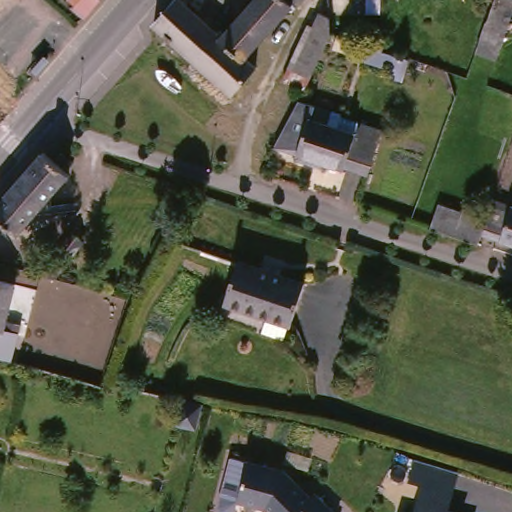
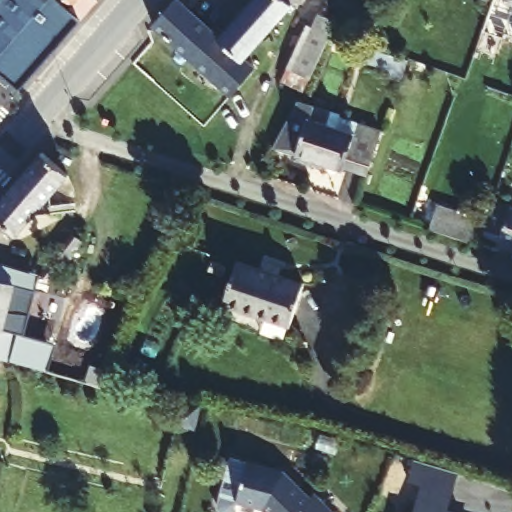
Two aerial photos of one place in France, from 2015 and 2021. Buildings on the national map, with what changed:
new [(79,17),(19,89),(0,72),(0,0),(59,0),(79,17)]
unchanged [(69,0),(94,0),(80,16),(67,5),(71,2),(69,0)]
unchanged [(285,4),(270,21),(237,59),(247,70),(225,95),(200,72),(150,26),(172,0),(215,39),(250,0),(280,0),(285,4)]
unchanged [(289,8),(285,4),(280,0),(296,0),(289,8)]
unchanged [(494,61),(471,59),(492,0),(512,0),(512,13),(494,61)]
unchanged [(278,81),(285,67),(306,25),(312,29),(318,15),(330,20),(332,40),(311,80),(303,95),(278,81)]
unchanged [(336,54),(340,41),(405,64),(401,77),(336,54)]
unchanged [(367,180),(324,166),(322,171),(296,161),(297,156),(275,149),(297,107),(300,102),(342,117),(341,120),(382,134),(381,139),(367,180)]
unchanged [(64,180),(12,239),(0,229),(0,199),(37,156),(64,180)]
unchanged [(483,235),(496,201),(512,208),(512,245),(483,235)]
unchanged [(483,221),(476,245),(427,229),(436,204),(483,221)]
unchanged [(71,232),(84,241),(62,270),(49,260),(71,232)]
unchanged [(287,325),(282,340),(261,332),(266,318),(222,304),(237,260),(305,282),(290,326),(287,325)]
unchanged [(5,311),(16,315),(10,336),(16,338),(9,365),(0,362),(0,285),(12,288),(5,311)]
unchanged [(104,379),(102,383),(70,375),(75,361),(107,370),(104,379)]
unchanged [(192,403),(202,406),(195,428),(176,423),(182,401),(192,403)]
unchanged [(313,490),(336,512),(270,512),(263,505),(236,498),(232,512),(230,512),(219,509),(216,503),(230,455),(283,469),(310,495),(313,490)]
unchanged [(450,508),(463,512),(411,512),(421,484),(404,480),(411,457),(460,470),(450,508)]

